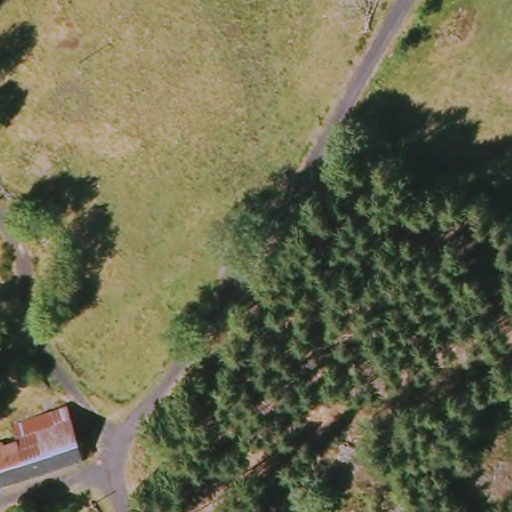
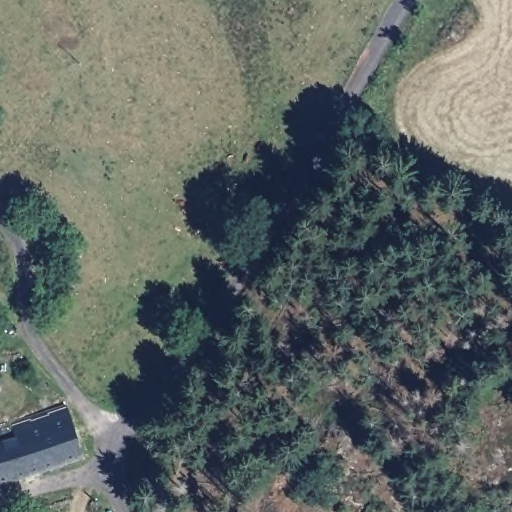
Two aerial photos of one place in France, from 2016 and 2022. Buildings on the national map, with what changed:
unchanged [(18,436),(16,422),(69,407),(80,442),(91,440),(91,456),(0,485),(0,441),(18,436)]

